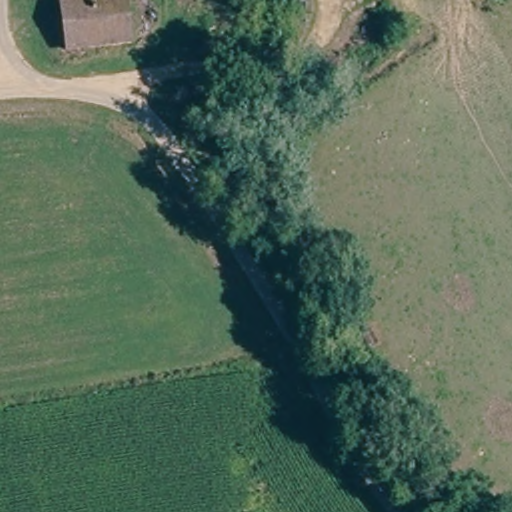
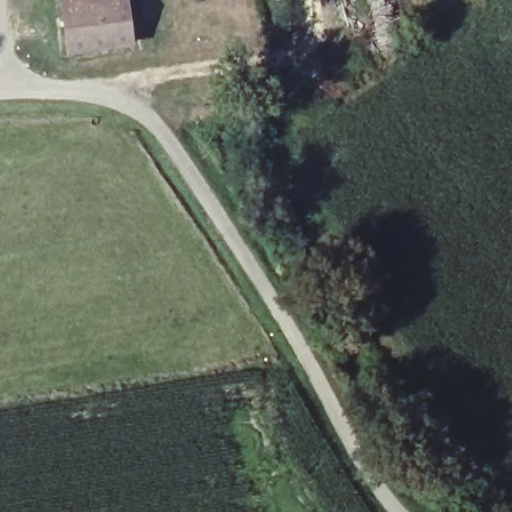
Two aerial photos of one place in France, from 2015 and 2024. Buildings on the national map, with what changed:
unchanged [(135,27),(136,31),(71,40),(67,0),(132,0),(135,27)]

